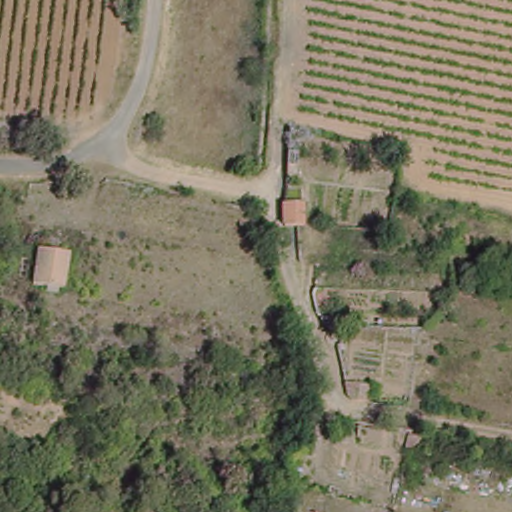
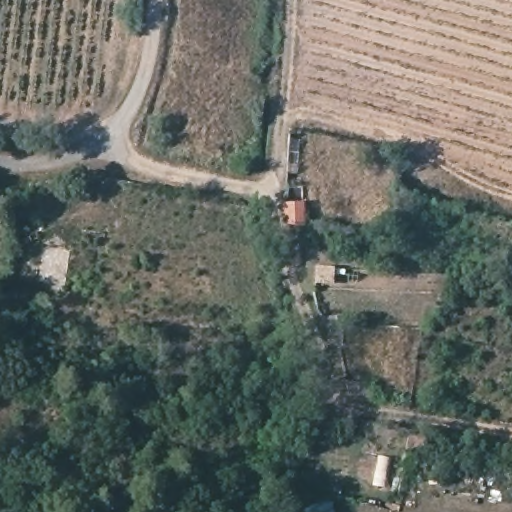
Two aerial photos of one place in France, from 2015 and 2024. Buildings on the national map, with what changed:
unchanged [(300,149),(299,163),(294,163),(290,185),(285,185),(289,126),(301,129),(300,149)]
unchanged [(302,219),(299,218),(284,217),(285,200),(303,202),(302,219)]
unchanged [(63,284),(36,282),(37,246),(66,248),(63,284)]
unchanged [(365,394),(345,391),(342,374),(365,377),(365,394)]

